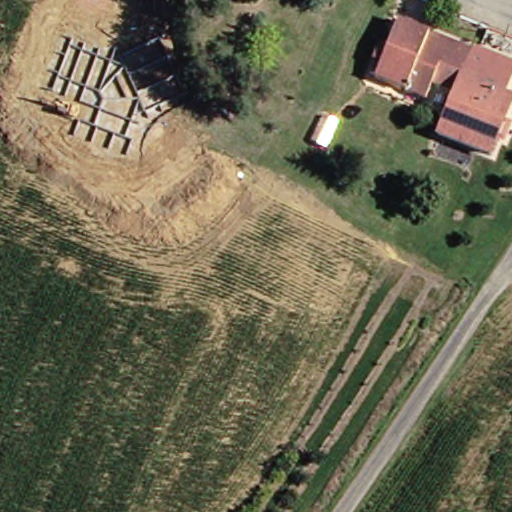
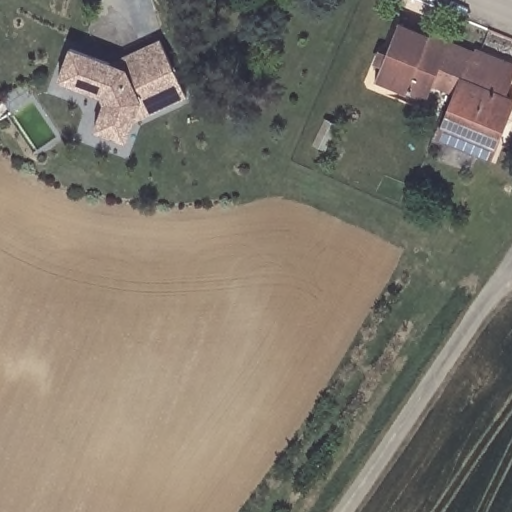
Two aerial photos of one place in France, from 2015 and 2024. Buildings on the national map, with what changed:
unchanged [(436,142),(454,102),(449,99),(435,92),(425,112),(370,87),(394,31),(425,45),(422,52),(462,68),(460,72),(466,75),(503,92),(499,104),(511,110),(503,129),(487,165),(475,160),(436,142)]
new [(94,132),(102,105),(101,99),(57,82),(70,49),(102,60),(160,41),(186,98),(139,114),(126,144),(94,132)]

